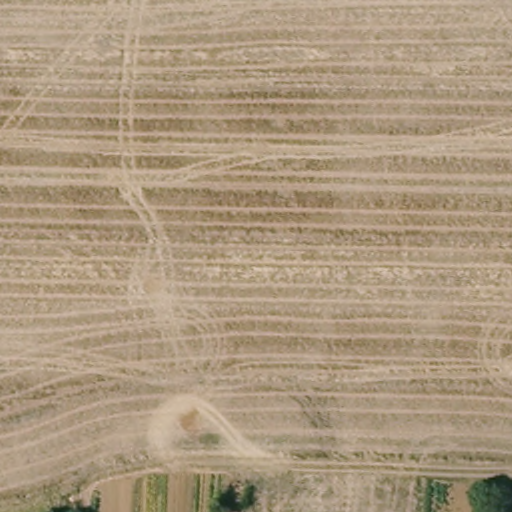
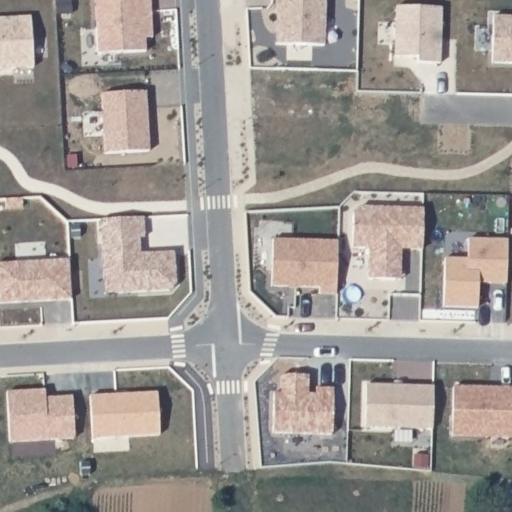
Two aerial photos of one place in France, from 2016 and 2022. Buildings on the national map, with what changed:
new [(150,0),(152,54),(96,53),(95,0),(150,0)]
new [(326,0),(325,46),(276,45),(277,0),(326,0)]
new [(396,6),(441,8),(439,64),(417,63),(417,58),(394,57),(396,6)]
new [(30,16),(33,66),(12,68),(8,65),(1,66),(2,69),(0,69),(0,18),(30,16)]
new [(512,17),(512,64),(492,63),(493,16),(512,17)]
new [(147,131),(149,151),(105,153),(102,94),(145,91),(146,109),(147,131)]
new [(368,251),(353,248),(354,212),(361,205),(424,208),(422,251),(400,249),(399,280),(367,280),(368,251)]
new [(103,280),(100,220),(143,217),(144,237),(134,238),(135,254),(174,252),(176,284),(169,290),(116,293),(104,294),(103,280)]
new [(272,240),(337,241),(336,294),(319,293),(319,288),(271,286),(272,240)]
new [(444,258),(467,260),(468,240),(507,243),(506,283),(479,282),(478,308),(442,307),(444,258)]
new [(68,260),(70,301),(0,305),(0,264),(68,260)]
new [(272,433),(273,393),(280,394),(281,375),(308,376),(307,397),(315,397),(315,388),(333,388),(332,434),(272,433)]
new [(365,385),(433,387),(432,429),(364,427),(365,385)]
new [(433,387),(512,389),(512,437),(432,435),(432,429),(433,387)]
new [(7,393),(46,389),(47,398),(71,397),(74,438),(9,441),(7,393)]
new [(157,392),(159,434),(92,438),(90,396),(157,392)]

